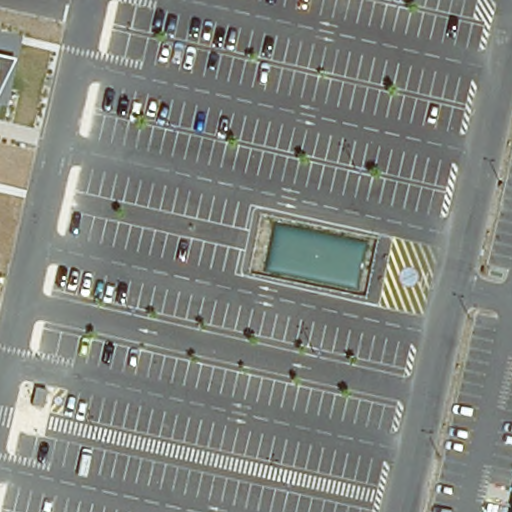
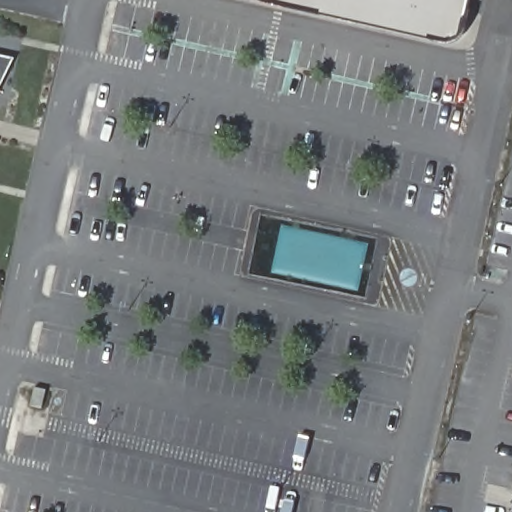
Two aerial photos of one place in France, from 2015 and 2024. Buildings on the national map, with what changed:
new [(468,25),(462,36),(450,41),(431,39),(255,0),(471,0),(468,25)]
unchanged [(0,92),(0,55),(16,60),(0,92)]

